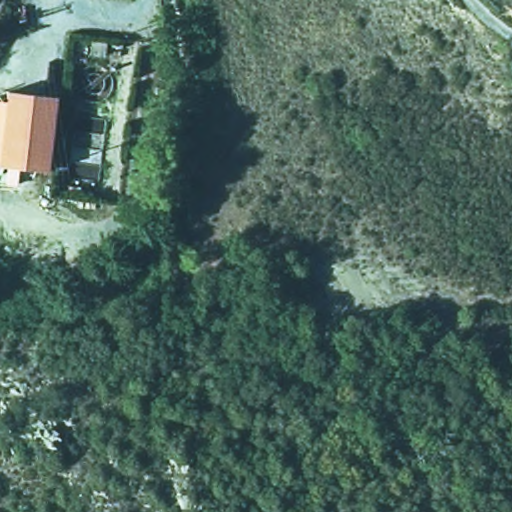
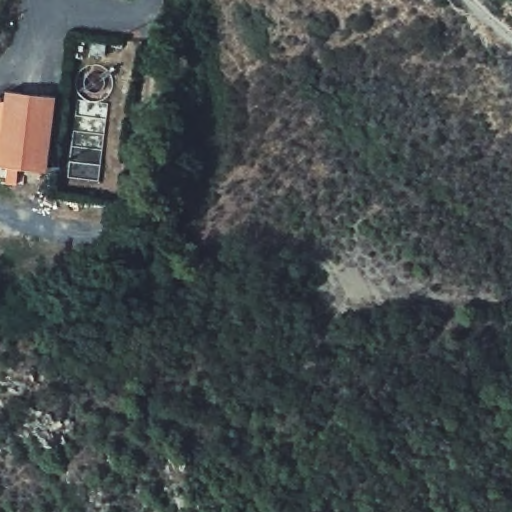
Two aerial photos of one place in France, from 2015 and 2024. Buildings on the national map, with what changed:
unchanged [(49,174),(0,168),(0,104),(7,105),(8,94),(57,100),(54,124),(49,174)]

